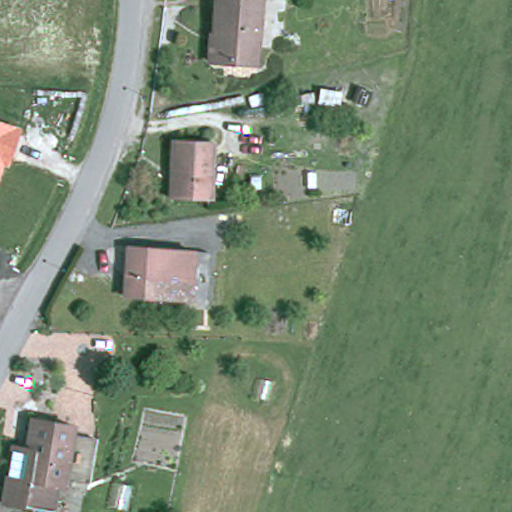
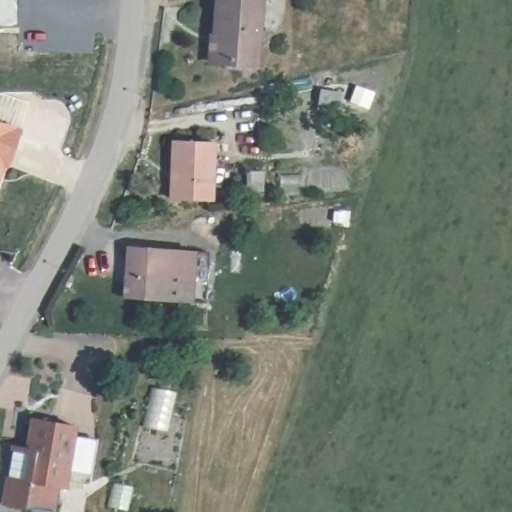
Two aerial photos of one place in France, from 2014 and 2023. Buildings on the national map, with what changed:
new [(0,0),(17,0),(19,28),(0,27),(0,0)]
unchanged [(212,64),(218,0),(260,0),(254,65),(212,64)]
unchanged [(9,166),(3,165),(0,174),(0,121),(22,129),(9,166)]
unchanged [(213,144),(212,202),(170,202),(172,143),(213,144)]
unchanged [(175,252),(172,304),(126,300),(129,249),(175,252)]
unchanged [(55,512),(31,512),(31,511),(1,505),(12,448),(27,451),(34,421),(74,427),(71,439),(61,488),(55,512)]
unchanged [(92,444),(84,491),(61,488),(71,439),(92,444)]

